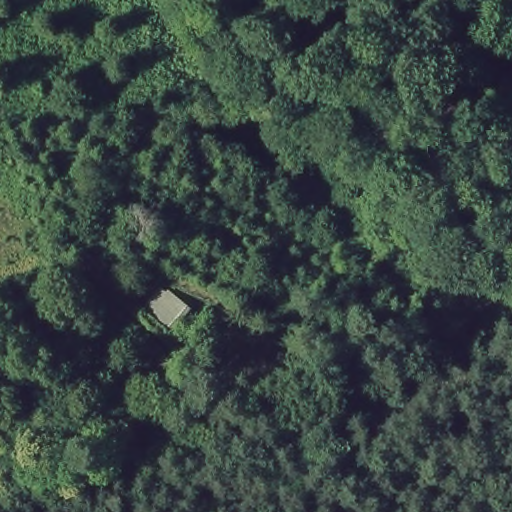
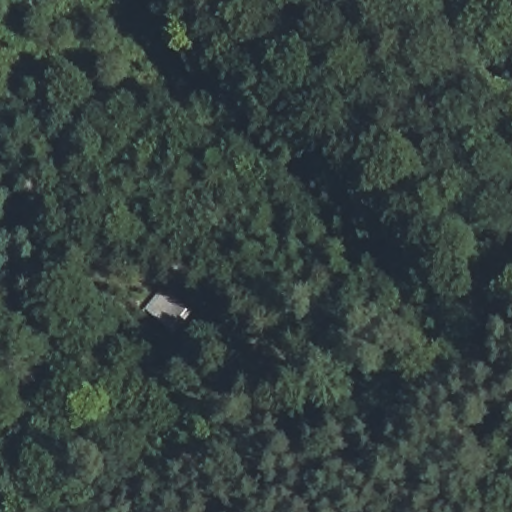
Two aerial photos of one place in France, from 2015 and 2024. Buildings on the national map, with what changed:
unchanged [(193,308),(173,334),(148,310),(166,286),(193,308)]

